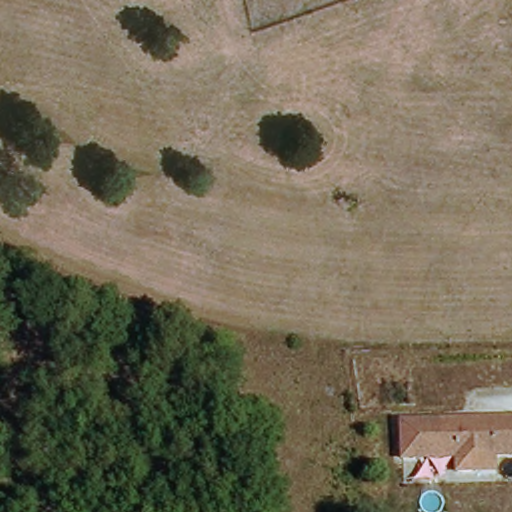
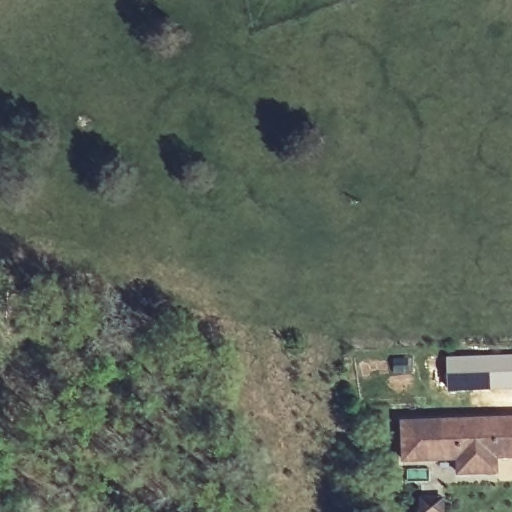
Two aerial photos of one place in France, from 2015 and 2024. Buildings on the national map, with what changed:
new [(512,353),(512,389),(447,392),(445,355),(512,353)]
unchanged [(497,470),(460,472),(459,457),(404,459),(402,420),(512,416),(512,454),(496,455),(497,470)]
new [(452,512),(427,512),(427,496),(452,495),(452,512)]

